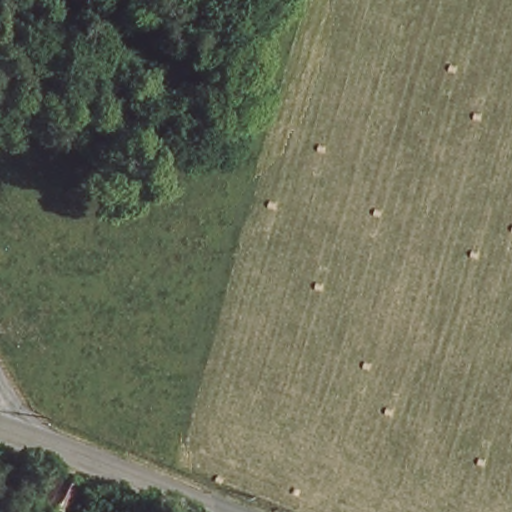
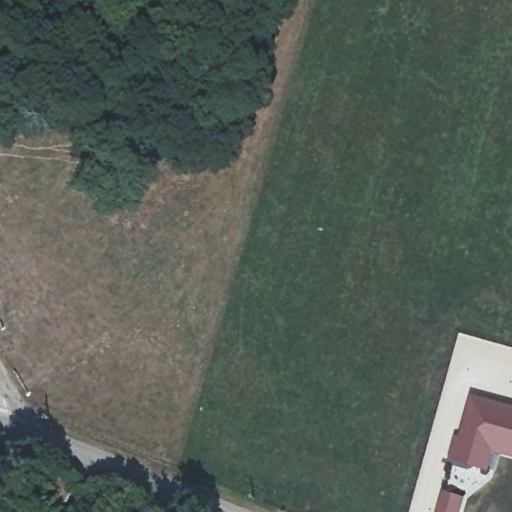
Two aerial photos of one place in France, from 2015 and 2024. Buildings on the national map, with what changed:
new [(494,454),(489,473),(447,462),(455,437),(459,438),(472,396),(512,407),(512,459),(494,454)]
unchanged [(74,512),(61,512),(47,506),(57,476),(82,488),(74,512)]

